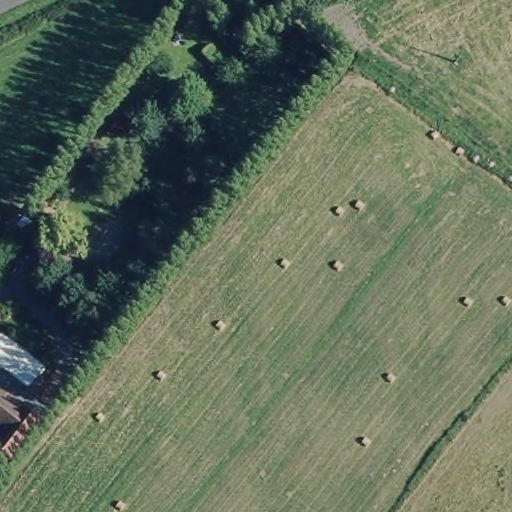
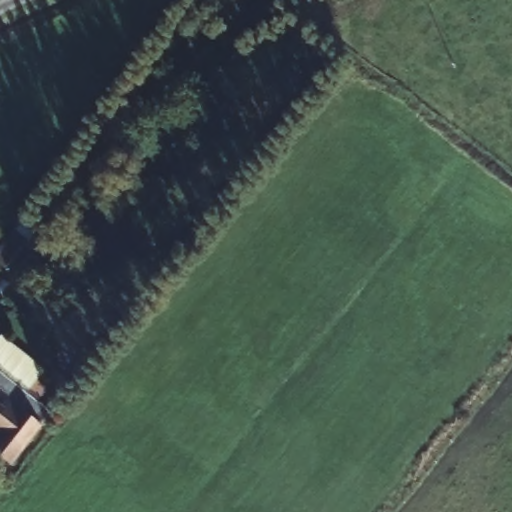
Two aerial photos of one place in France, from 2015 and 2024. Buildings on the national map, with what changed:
unchanged [(25,382),(36,391),(27,402),(42,414),(2,465),(0,464),(0,343),(35,369),(25,382)]

